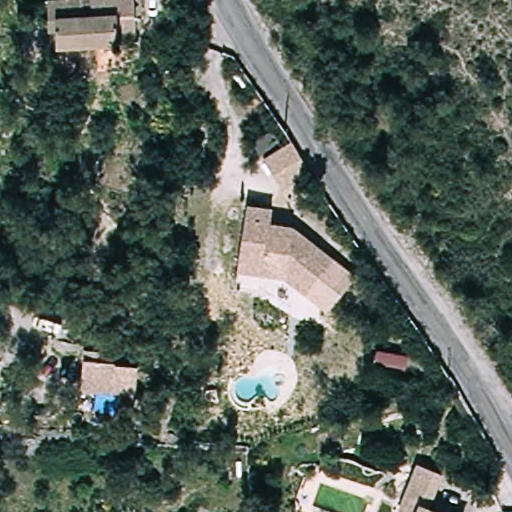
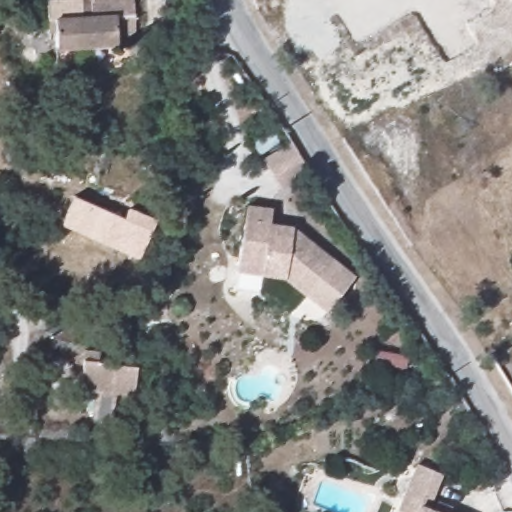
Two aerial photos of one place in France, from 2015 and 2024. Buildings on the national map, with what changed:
unchanged [(46,30),(44,0),(131,0),(134,34),(115,35),(115,46),(54,49),(54,30),(46,30)]
unchanged [(262,159),(292,141),(311,175),(282,194),(262,159)]
new [(74,196),(124,217),(129,207),(158,221),(140,261),(62,224),(74,196)]
unchanged [(272,300),(286,279),(279,275),(239,269),(248,200),(276,205),(272,217),(296,224),(334,255),(305,293),(292,313),(272,300)]
unchanged [(89,353),(105,355),(104,363),(119,366),(119,368),(143,371),(140,396),(88,390),(89,353)]
unchanged [(429,508),(433,497),(448,502),(444,512),(394,512),(399,497),(405,480),(410,465),(435,473),(429,488),(423,506),(429,508)]

